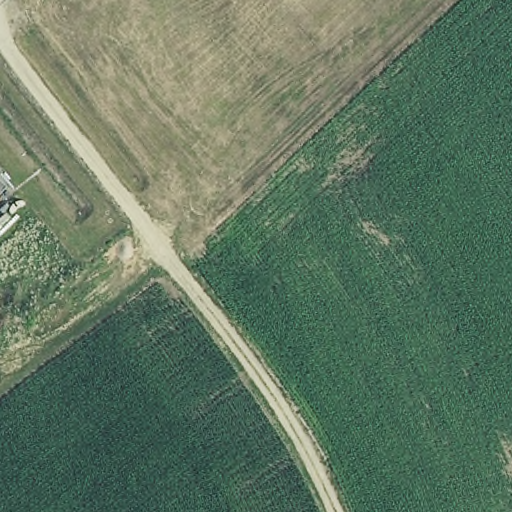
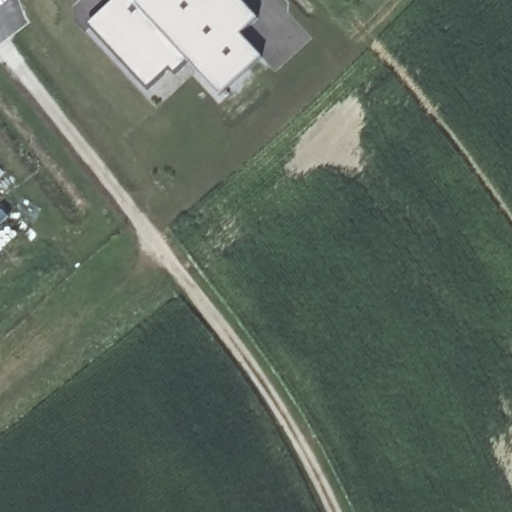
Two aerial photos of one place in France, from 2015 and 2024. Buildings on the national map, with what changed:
new [(241,0),(251,11),(234,27),(255,49),(213,88),(182,54),(168,67),(163,62),(141,82),(83,20),(105,0),(241,0)]

